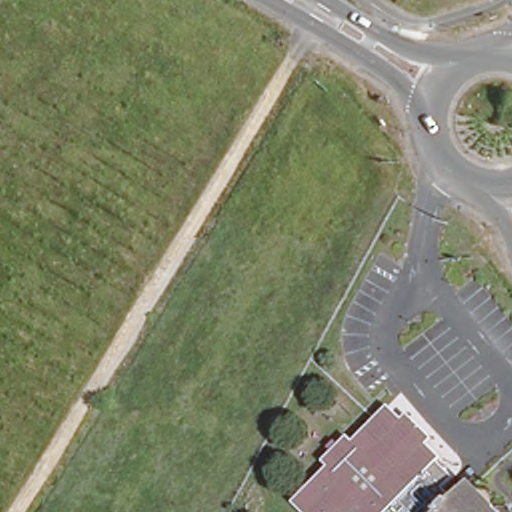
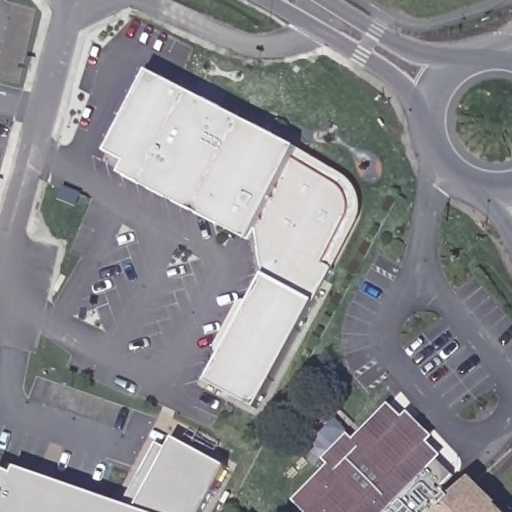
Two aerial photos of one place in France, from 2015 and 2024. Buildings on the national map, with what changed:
new [(226,351),(216,345),(240,303),(249,306),(265,276),(259,229),(251,243),(150,190),(124,177),(129,165),(110,155),(151,74),(300,150),(345,177),(351,183),(356,191),(360,200),(360,209),(359,220),(333,270),(315,303),(257,411),(209,384),(226,351)]
unchanged [(320,458),(340,438),(353,438),(376,413),(380,412),(383,413),(386,415),(388,417),(397,417),(414,434),(414,442),(444,473),(445,479),(437,485),(452,501),(461,493),(479,512),(308,512),(297,501),(297,495),(320,474),(320,458)]
new [(126,507),(159,445),(171,449),(176,440),(226,468),(202,512),(0,512),(0,477),(4,470),(17,476),(20,470),(126,507)]

